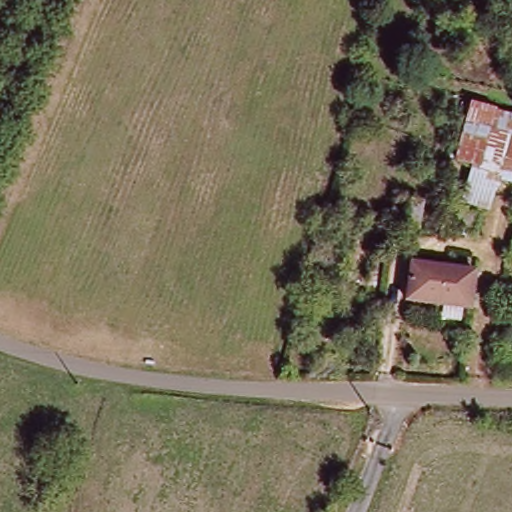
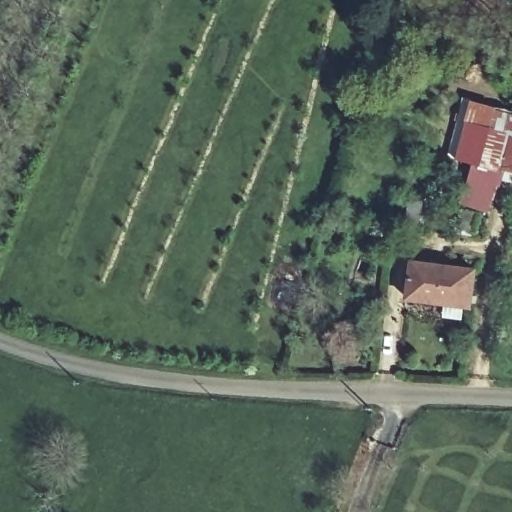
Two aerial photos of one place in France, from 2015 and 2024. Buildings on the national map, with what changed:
unchanged [(512,178),(500,175),(487,210),(462,204),(470,169),(452,162),(470,111),(512,123),(512,178)]
unchanged [(469,312),(407,302),(414,264),(475,274),(469,312)]

